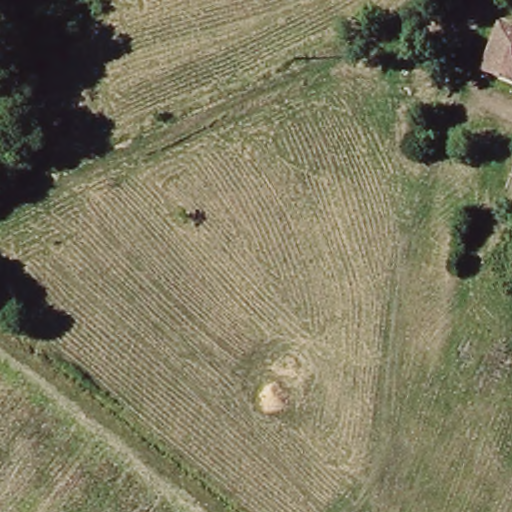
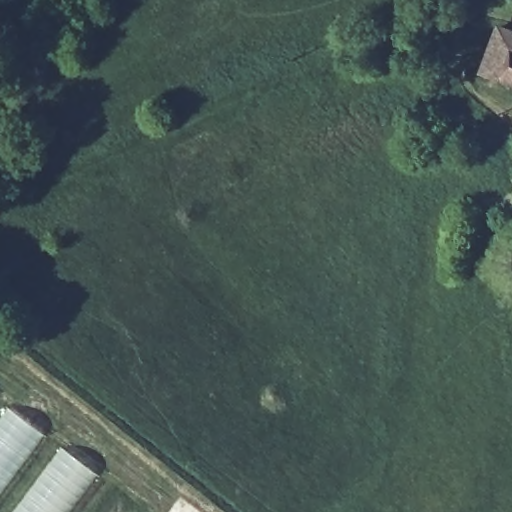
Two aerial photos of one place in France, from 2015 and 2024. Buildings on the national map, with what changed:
unchanged [(500,13),(512,18),(512,86),(481,73),(500,13)]
new [(6,408),(43,436),(0,493),(0,416),(6,408)]
new [(59,447),(96,475),(69,512),(10,512),(59,447)]

